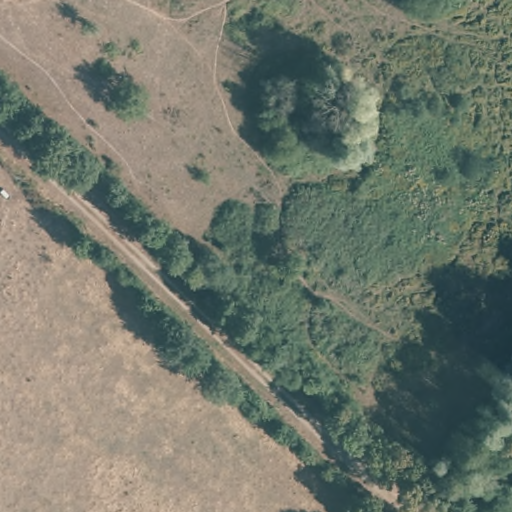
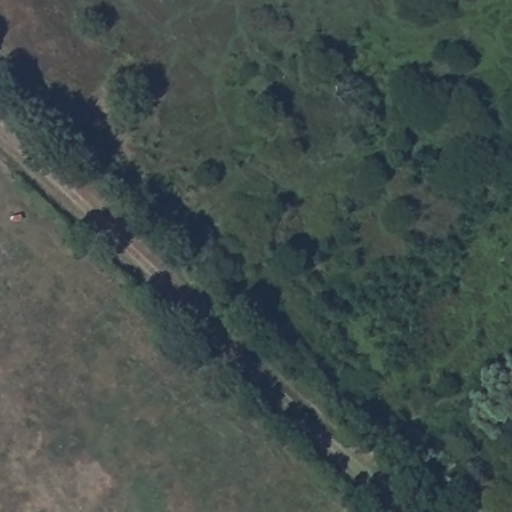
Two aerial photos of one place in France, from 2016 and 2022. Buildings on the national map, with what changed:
[]

